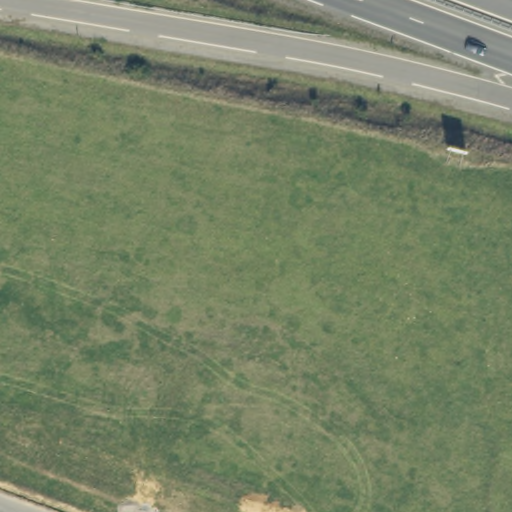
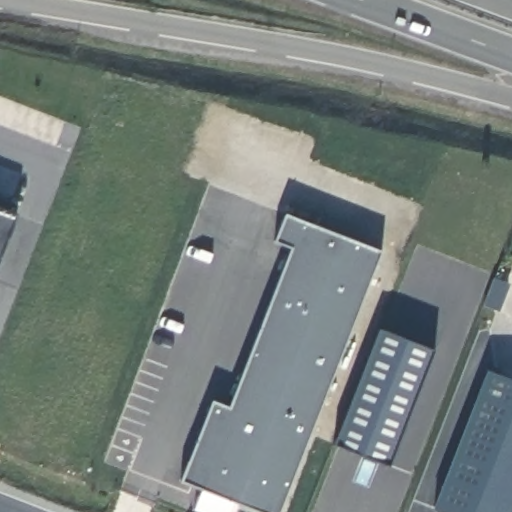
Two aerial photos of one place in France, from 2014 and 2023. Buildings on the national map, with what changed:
new [(18,213),(0,261),(0,207),(18,213)]
new [(259,512),(179,480),(210,400),(229,407),(290,247),(274,240),(284,213),(379,251),(279,512),(259,512)]
new [(433,349),(388,465),(333,443),(377,328),(433,349)]
new [(512,512),(442,512),(434,508),(487,370),(512,380),(512,512)]

